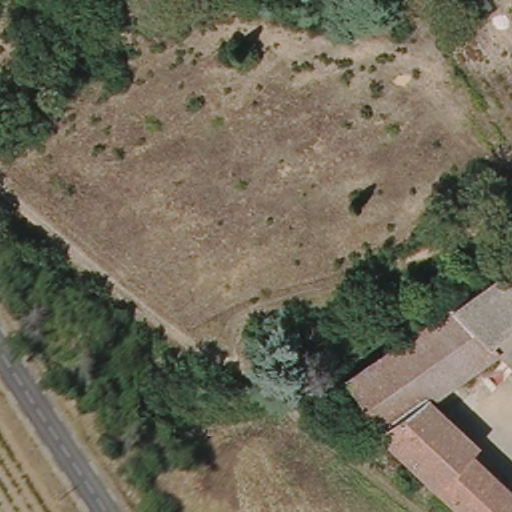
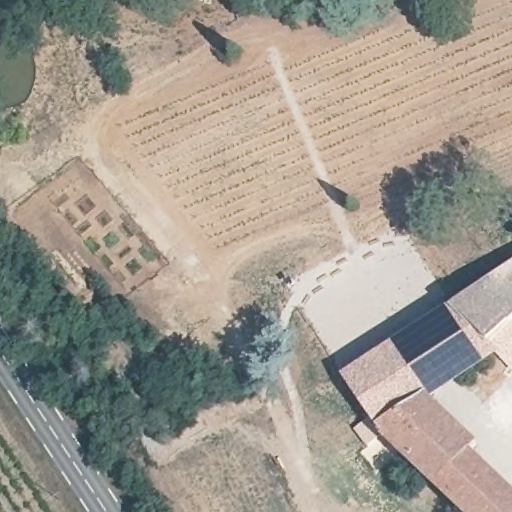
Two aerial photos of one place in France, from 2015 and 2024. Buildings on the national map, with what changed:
unchanged [(500,348),(431,395),(385,425),(389,431),(376,440),(366,425),(376,417),(348,370),(512,264),(512,363),(500,348)]
unchanged [(441,481),(389,431),(385,425),(431,395),(480,441),(473,448),(441,481)]
unchanged [(512,484),(512,512),(472,512),(441,481),(473,448),(512,484)]

